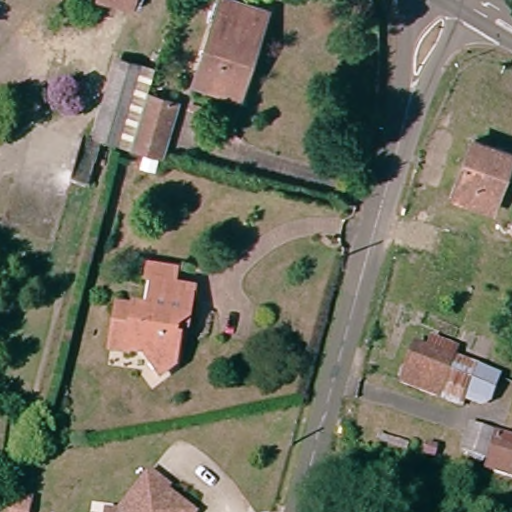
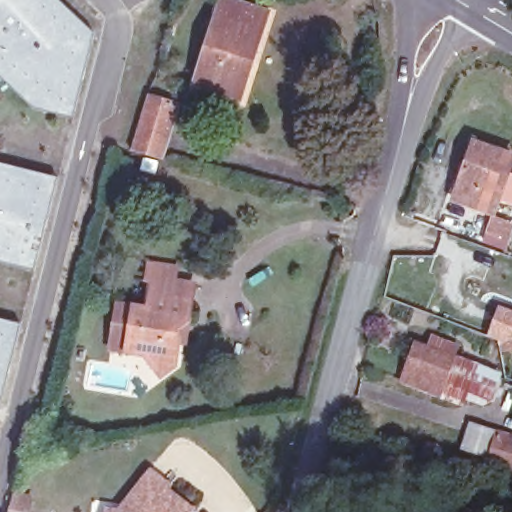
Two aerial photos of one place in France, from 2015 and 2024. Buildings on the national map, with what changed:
new [(73,117),(34,106),(0,74),(0,0),(60,0),(94,33),(73,117)]
demolished [(127,0),(144,0),(142,4),(127,0)]
unchanged [(221,0),(230,0),(261,11),(268,14),(254,58),(241,99),(208,88),(194,83),(200,64),(221,0)]
demolished [(41,15),(34,42),(40,44),(37,53),(31,52),(27,69),(42,74),(36,100),(0,90),(0,5),(41,15)]
demolished [(117,143),(98,138),(121,66),(140,72),(117,143)]
unchanged [(171,103),(169,109),(176,112),(161,160),(129,153),(131,146),(141,116),(148,94),(171,103)]
demolished [(87,184),(71,180),(82,141),(97,144),(87,184)]
unchanged [(512,158),(492,212),(454,198),(473,144),(512,158)]
new [(56,177),(33,268),(0,260),(0,163),(56,177)]
unchanged [(113,319),(117,300),(144,306),(150,274),(145,273),(147,259),(174,265),(172,278),(190,280),(185,313),(174,323),(172,334),(177,334),(173,357),(159,367),(144,350),(123,346),(108,343),(113,319)]
new [(512,313),(512,346),(502,351),(497,340),(478,334),(489,305),(512,313)]
new [(20,323),(0,401),(0,318),(20,323)]
unchanged [(425,344),(433,334),(461,341),(457,351),(500,375),(489,405),(470,399),(463,408),(402,385),(410,339),(425,344)]
unchanged [(491,457),(466,447),(475,425),(499,433),(491,457)]
unchanged [(512,469),(494,463),(506,429),(512,432),(512,469)]
unchanged [(137,506),(130,499),(156,467),(181,487),(178,492),(200,510),(198,512),(132,512),(137,506)]
unchanged [(14,490),(23,492),(32,494),(31,502),(28,512),(9,512),(14,490)]

